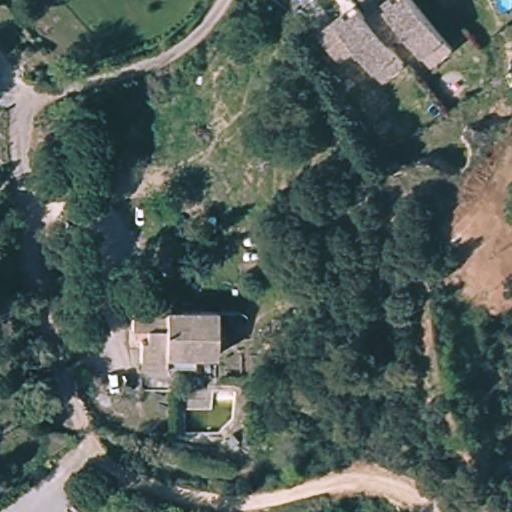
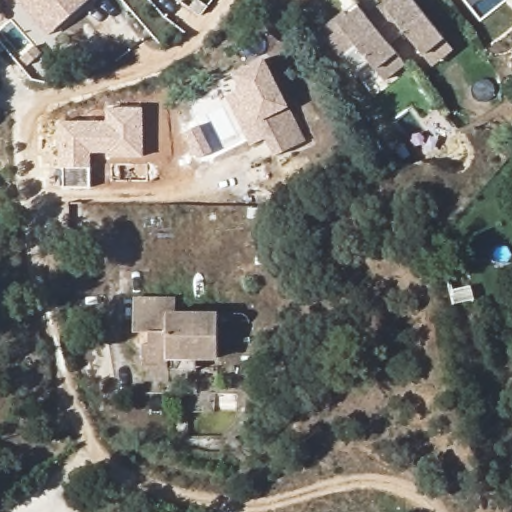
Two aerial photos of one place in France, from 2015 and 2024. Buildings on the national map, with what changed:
new [(17,0),(89,0),(48,36),(17,0)]
unchanged [(446,52),(435,63),(425,53),(405,31),(390,44),(369,23),(392,0),(393,0),(411,0),(444,34),(450,40),(453,44),(446,52)]
unchanged [(410,68),(392,86),(382,76),(362,55),(348,68),(324,43),(336,31),(347,21),(357,11),(361,14),(369,23),(390,44),(401,58),(411,68),(410,68)]
new [(241,91),(232,73),(265,57),(290,105),(305,139),(274,156),(265,138),(251,146),(226,97),(241,91)]
new [(107,157),(107,151),(91,152),(90,167),(90,186),(63,185),(64,167),(60,167),(60,120),(107,120),(106,107),(143,107),(144,157),(107,157)]
unchanged [(167,314),(225,310),(227,321),(220,322),(221,342),(208,343),(210,353),(188,354),(190,365),(130,368),(127,298),(166,294),(167,314)]

